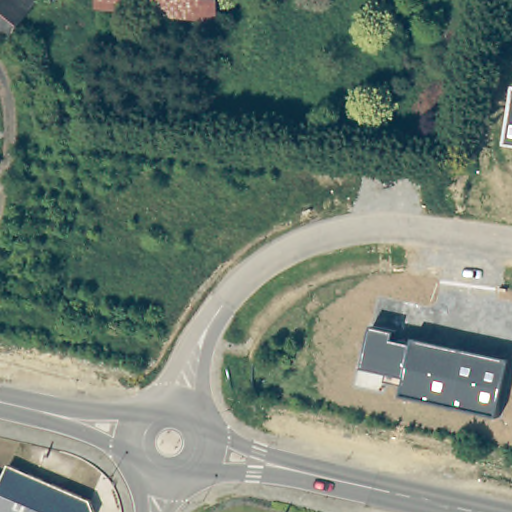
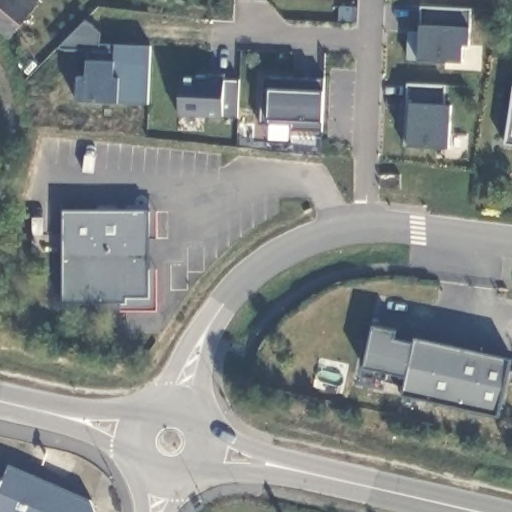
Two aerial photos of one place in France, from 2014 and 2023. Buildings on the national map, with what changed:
unchanged [(16,37),(9,40),(0,33),(0,0),(43,0),(16,37)]
new [(469,27),(469,45),(462,45),(462,61),(419,59),(420,24),(421,7),(471,9),(469,27)]
new [(63,47),(60,47),(60,46),(60,44),(85,19),(101,32),(99,42),(114,43),(149,45),(146,103),(117,102),(76,100),(78,75),(86,75),(88,60),(88,49),(63,47)]
new [(178,116),(180,76),(223,78),(222,81),(237,81),(234,117),(221,117),(178,116)]
new [(292,129),(292,124),(260,122),(263,76),(322,80),(323,92),(320,121),(320,130),(292,129)]
new [(408,145),(411,102),(406,102),(408,84),(444,86),(442,104),(451,104),(449,147),(408,145)]
unchanged [(504,145),(512,92),(512,146),(504,145)]
new [(122,301),(63,301),(64,211),(149,210),(156,210),(156,239),(148,239),(148,268),(156,267),(156,309),(121,310),(122,301)]
unchanged [(396,332),(394,340),(412,344),(414,337),(512,360),(499,417),(401,396),(404,384),(384,381),(386,374),(363,368),(372,327),(396,332)]
unchanged [(10,461),(96,499),(99,512),(0,512),(0,475),(4,477),(10,461)]

